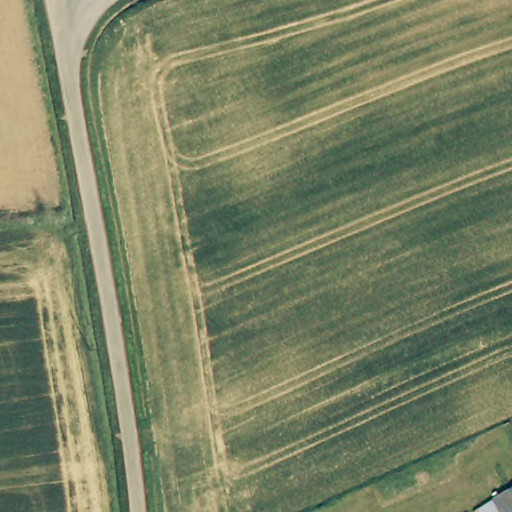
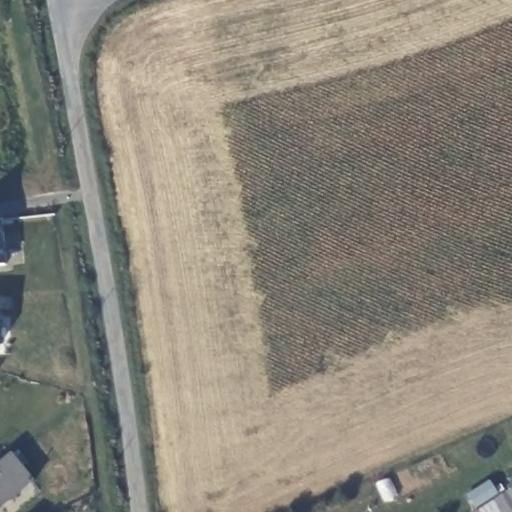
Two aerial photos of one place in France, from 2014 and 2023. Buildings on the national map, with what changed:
new [(0,510),(0,463),(12,453),(34,481),(0,510)]
unchanged [(504,512),(496,501),(512,491),(512,512),(504,512)]

